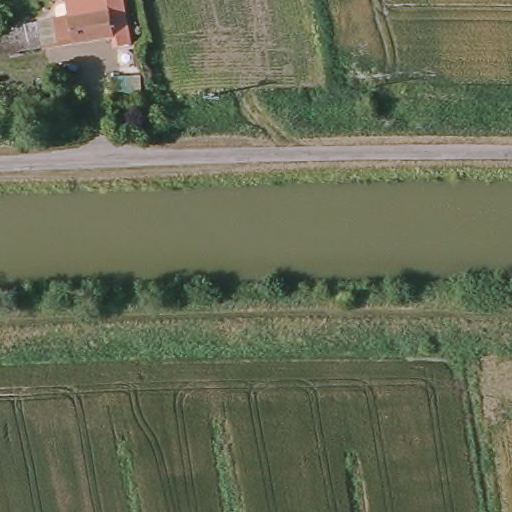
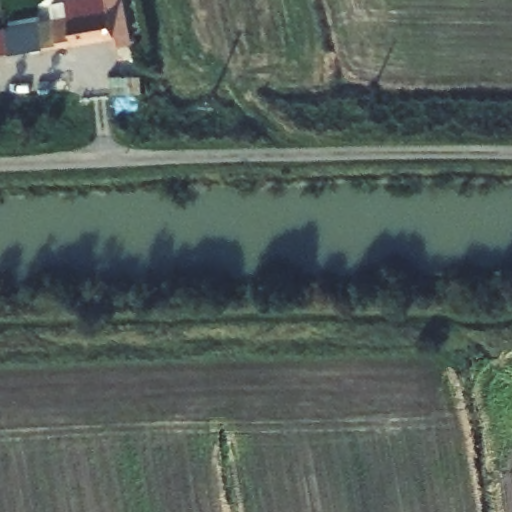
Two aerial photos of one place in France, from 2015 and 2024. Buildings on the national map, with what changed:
unchanged [(70,15),(68,0),(122,0),(129,33),(61,45),(54,17),(64,15),(70,15)]
unchanged [(14,52),(9,31),(43,25),(47,47),(14,52)]

